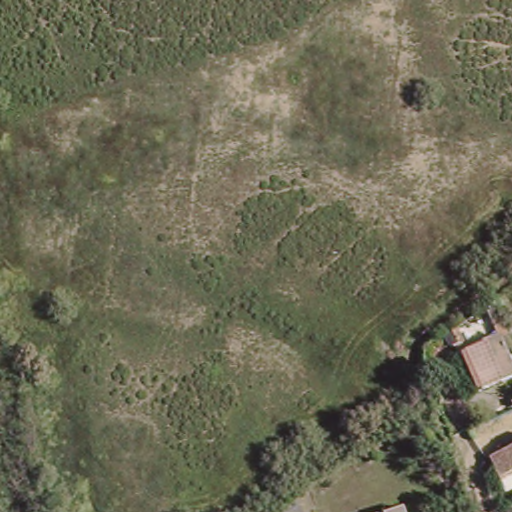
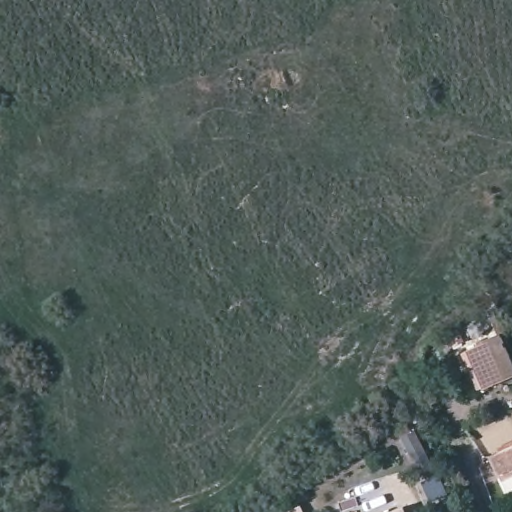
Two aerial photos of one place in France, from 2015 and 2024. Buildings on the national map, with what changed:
unchanged [(509,358),(512,358),(512,380),(488,391),(480,375),(484,371),(474,344),(497,334),(509,358)]
unchanged [(512,442),(512,482),(500,487),(495,472),(487,453),(512,442)]
unchanged [(404,503),(407,512),(376,512),(404,503)]

